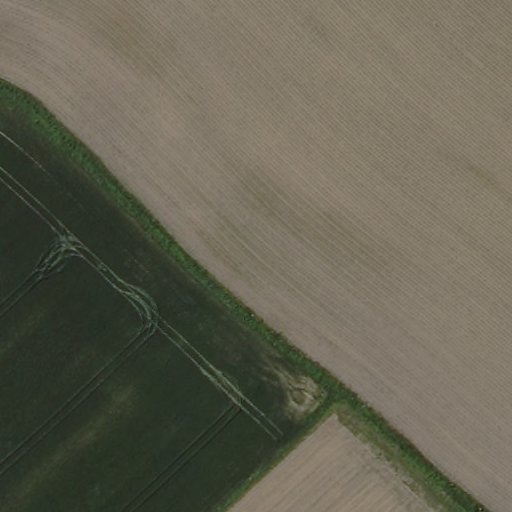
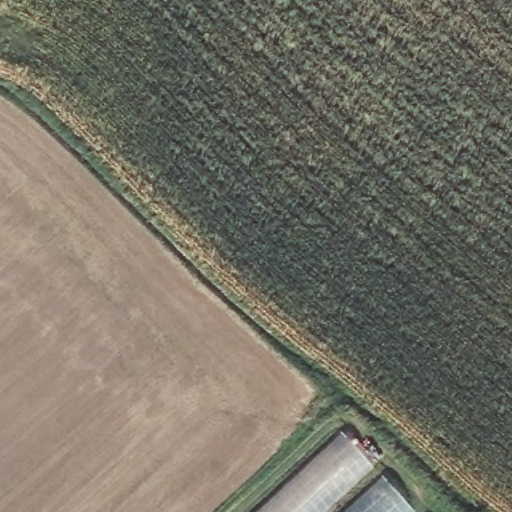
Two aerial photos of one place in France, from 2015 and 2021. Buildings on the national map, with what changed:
new [(373,467),(325,512),(256,512),(343,434),(373,467)]
new [(412,508),(408,512),(342,512),(381,475),(412,508)]

